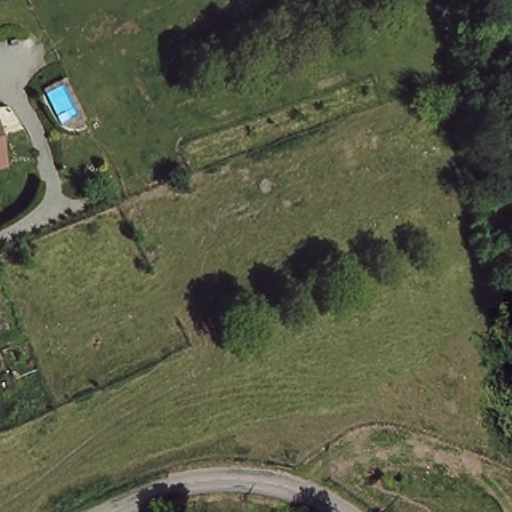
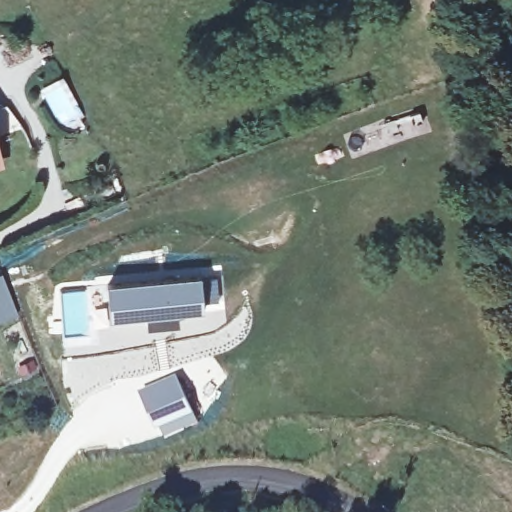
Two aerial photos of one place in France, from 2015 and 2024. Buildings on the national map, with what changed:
new [(217,272),(221,302),(204,303),(204,311),(180,315),(109,320),(106,282),(217,272)]
new [(18,317),(0,325),(0,273),(18,317)]
new [(178,375),(198,423),(163,438),(139,391),(178,375)]

